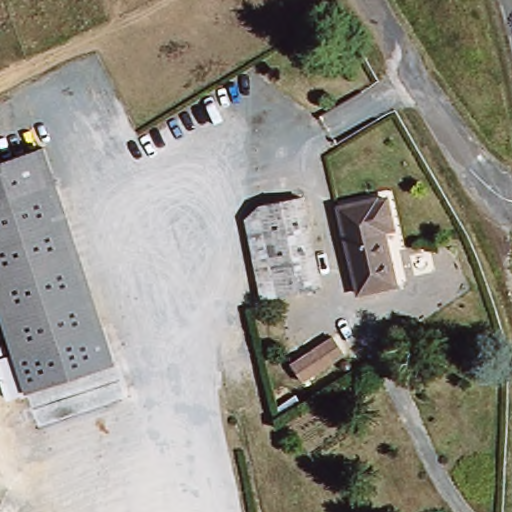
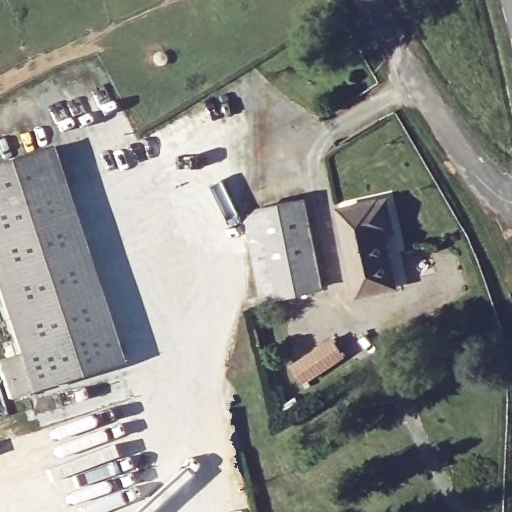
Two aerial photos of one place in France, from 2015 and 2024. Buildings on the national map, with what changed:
unchanged [(66,223),(0,245),(0,161),(46,146),(66,223)]
unchanged [(317,269),(276,279),(271,259),(252,264),(247,240),(268,238),(260,193),(301,184),(317,269)]
unchanged [(380,227),(395,282),(359,291),(335,203),(371,193),(372,199),(382,197),(388,225),(380,227)]
unchanged [(117,362),(31,391),(0,305),(0,245),(66,223),(117,362)]
unchanged [(292,364),(332,338),(342,354),(303,380),(292,364)]

